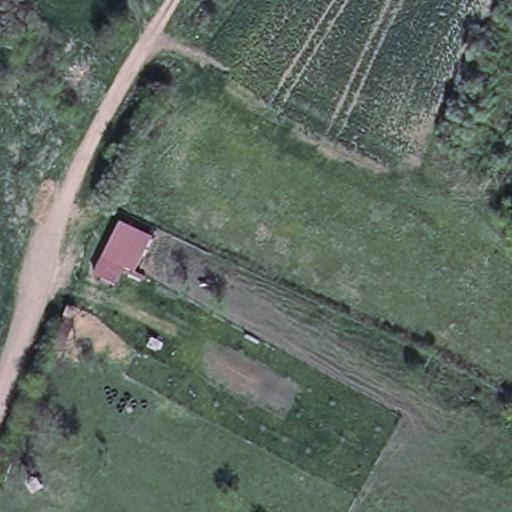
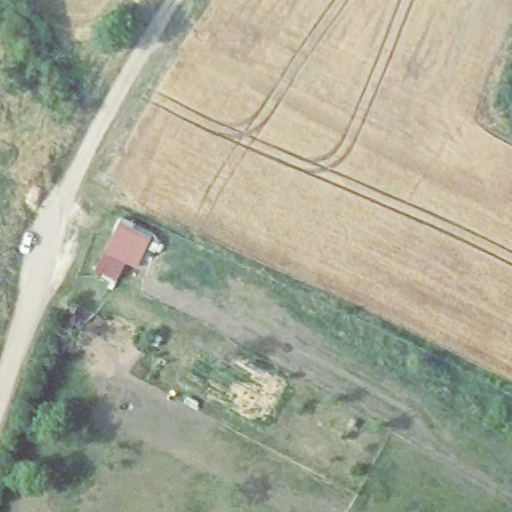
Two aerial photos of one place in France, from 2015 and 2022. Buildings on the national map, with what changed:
unchanged [(150,231),(135,264),(127,260),(118,278),(97,268),(122,217),(150,231)]

